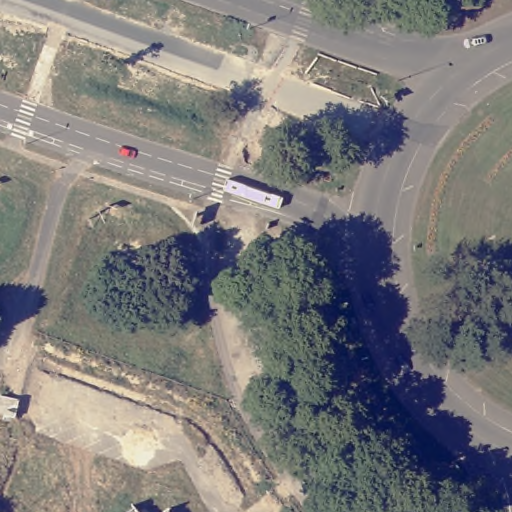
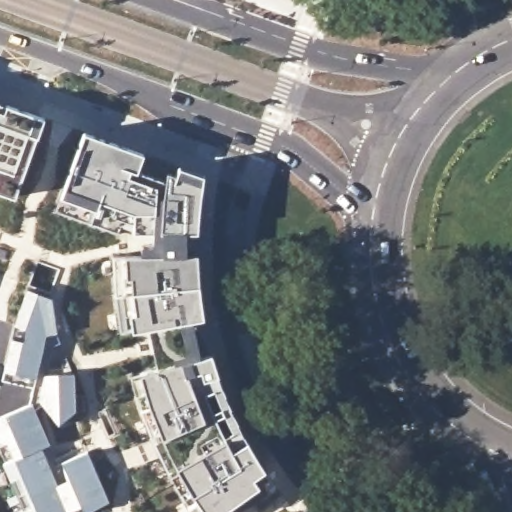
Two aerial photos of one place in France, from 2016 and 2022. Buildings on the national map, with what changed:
new [(42,119),(12,195),(0,191),(0,103),(42,119)]
new [(59,196),(82,132),(143,153),(136,171),(161,181),(163,170),(174,175),(178,167),(201,174),(195,232),(184,232),(185,253),(196,252),(198,284),(202,318),(191,321),(199,356),(210,353),(216,376),(214,376),(242,443),(244,441),(262,469),(250,477),(256,487),(220,512),(191,512),(168,474),(150,442),(139,411),(129,378),(137,373),(153,368),(143,329),(130,331),(127,313),(123,314),(119,294),(112,294),(109,256),(121,255),(139,253),(139,245),(149,245),(148,231),(131,233),(118,226),(116,233),(53,212),(59,196)]
new [(8,482),(1,464),(0,458),(0,416),(27,404),(30,388),(0,382),(0,379),(1,370),(13,326),(26,290),(52,298),(56,333),(53,333),(58,343),(50,347),(43,372),(74,371),(76,412),(56,424),(39,402),(34,405),(50,445),(42,448),(57,484),(68,479),(61,462),(85,450),(108,504),(92,512),(85,512),(79,505),(68,510),(69,512),(21,512),(8,482)]
demolished [(17,400),(13,417),(11,417),(10,420),(1,418),(1,415),(0,415),(0,396),(17,400)]
demolished [(136,503),(144,512),(125,512),(136,503)]
demolished [(170,508),(174,512),(165,512),(170,508)]

